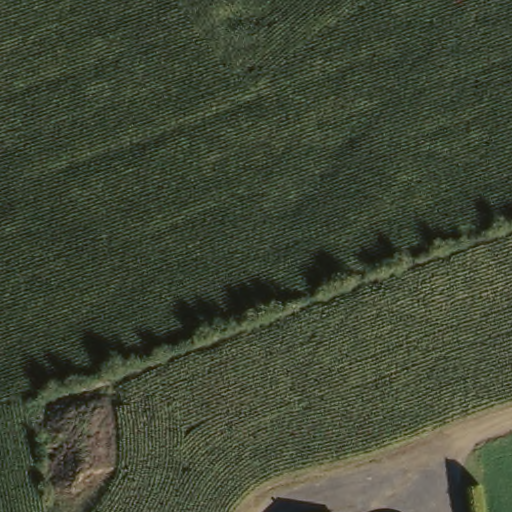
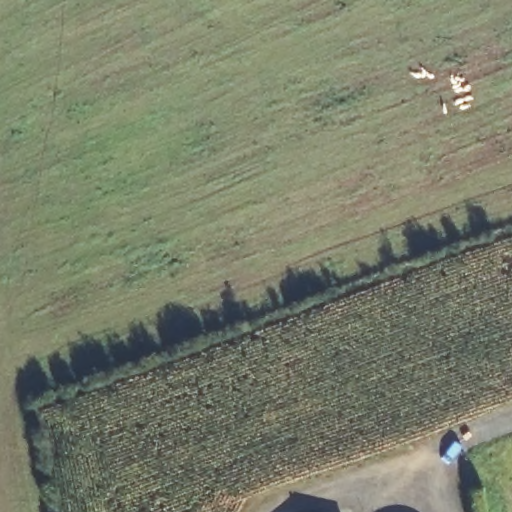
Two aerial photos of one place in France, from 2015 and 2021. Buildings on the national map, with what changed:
[]

